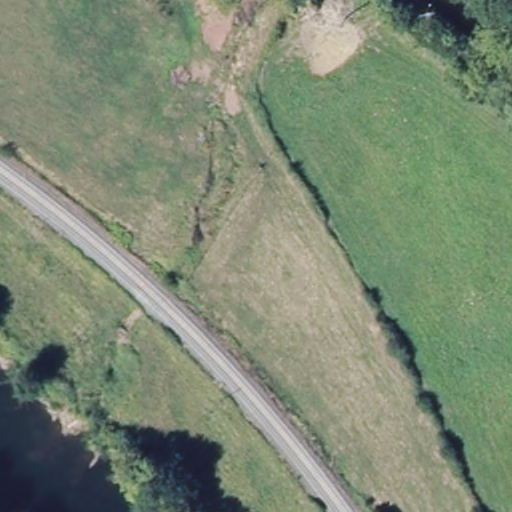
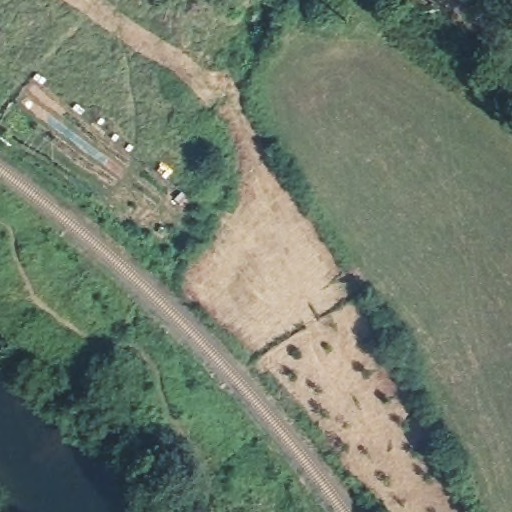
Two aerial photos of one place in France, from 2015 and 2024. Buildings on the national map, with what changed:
[]

